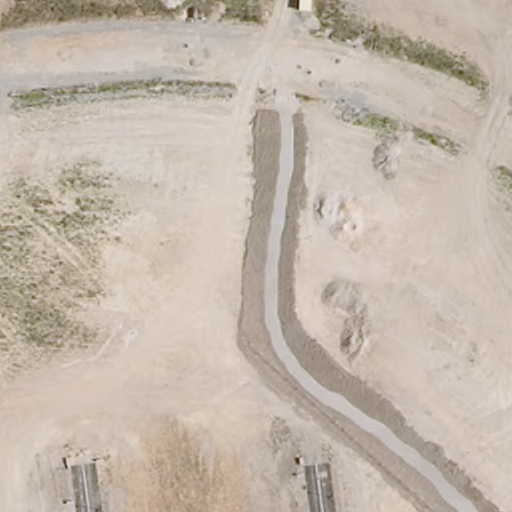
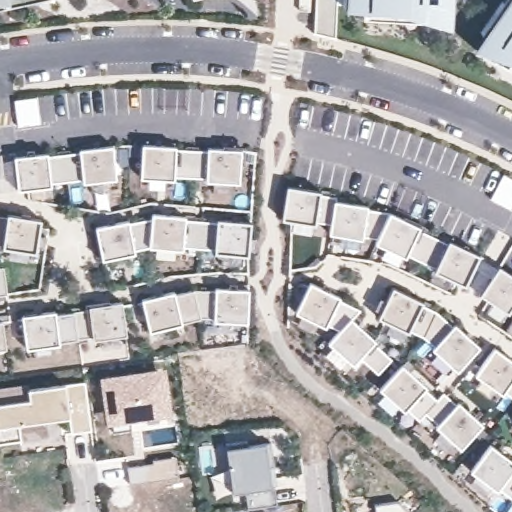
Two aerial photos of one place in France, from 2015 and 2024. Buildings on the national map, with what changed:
new [(0,0),(6,0),(0,1),(0,0)]
new [(51,0),(0,11),(0,1),(6,0),(51,0)]
new [(345,10),(345,0),(454,0),(453,27),(345,10)]
new [(474,45),(505,0),(512,0),(512,69),(474,45)]
new [(241,150),(241,184),(141,177),(143,143),(241,150)]
new [(112,144),(116,179),(20,190),(15,157),(112,144)]
new [(320,193),(336,197),(334,202),(389,212),(481,257),(467,283),(377,242),(328,235),(330,222),(283,218),(287,185),(320,193)]
new [(41,221),(38,250),(4,248),(0,248),(0,214),(9,213),(41,221)]
new [(128,223),(154,214),(251,224),(247,254),(150,246),(133,253),(104,259),(96,224),(128,223)]
new [(512,274),(512,314),(480,293),(499,265),(512,274)]
new [(7,294),(0,294),(0,268),(3,268),(7,294)]
new [(339,298),(359,309),(350,319),(373,340),(391,361),(379,374),(361,357),(354,364),(328,342),(338,333),(295,312),(310,283),(339,298)]
new [(438,310),(454,322),(479,347),(457,371),(434,348),(409,328),(378,317),(392,287),(438,310)]
new [(195,289),(248,289),(246,322),(200,318),(151,334),(142,299),(195,289)]
new [(55,310),(55,314),(122,302),(125,334),(58,341),(58,346),(25,349),(21,317),(55,310)]
new [(5,348),(0,348),(0,323),(3,323),(5,348)]
new [(512,362),(512,399),(501,392),(474,374),(494,347),(512,362)]
new [(426,388),(437,399),(444,392),(457,403),(482,426),(462,448),(437,423),(426,413),(416,422),(403,409),(381,387),(403,364),(426,388)]
new [(165,367),(171,414),(152,416),(150,402),(124,405),(127,428),(115,429),(114,424),(106,424),(100,376),(165,367)]
new [(71,432),(69,417),(20,424),(20,438),(0,441),(0,403),(30,399),(28,389),(68,384),(85,381),(93,428),(71,432)]
new [(249,509),(246,492),(233,494),(227,444),(248,441),(248,446),(272,443),(276,467),(271,468),(273,488),(276,487),(278,506),(249,509)]
new [(512,461),(512,500),(498,492),(472,470),(491,444),(512,461)]
new [(175,457),(178,475),(129,483),(126,466),(175,457)]
new [(377,504),(399,501),(411,512),(378,512),(377,504)]

